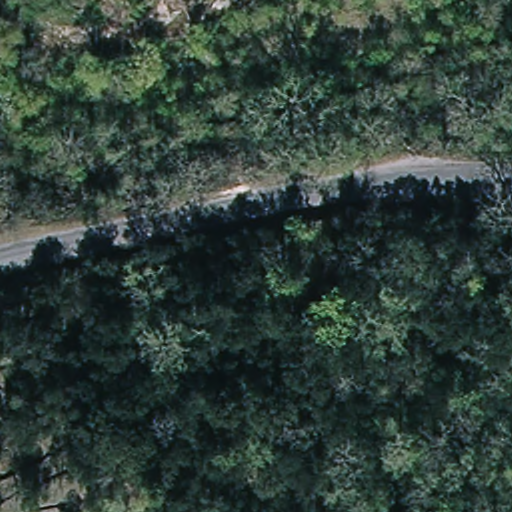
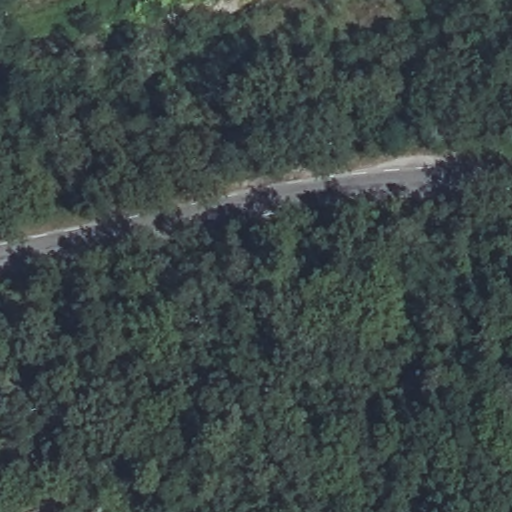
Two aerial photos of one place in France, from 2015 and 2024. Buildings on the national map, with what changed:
[]

